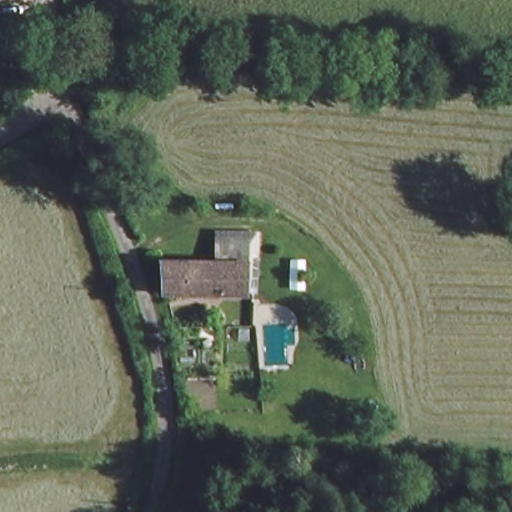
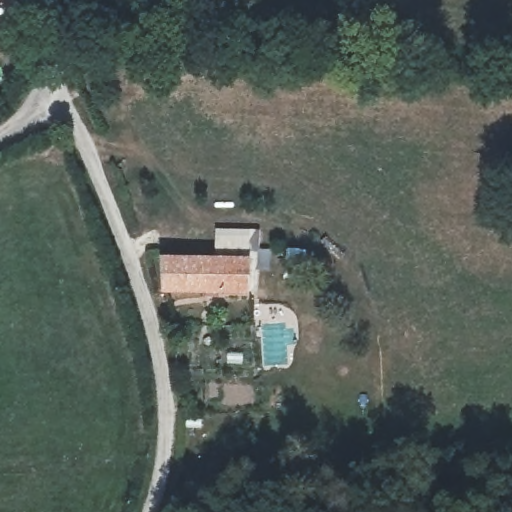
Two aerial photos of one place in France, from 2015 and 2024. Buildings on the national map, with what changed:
unchanged [(168,253),(219,257),(221,227),(246,229),(245,259),(245,278),(256,280),(257,292),(166,285),(168,253)]

